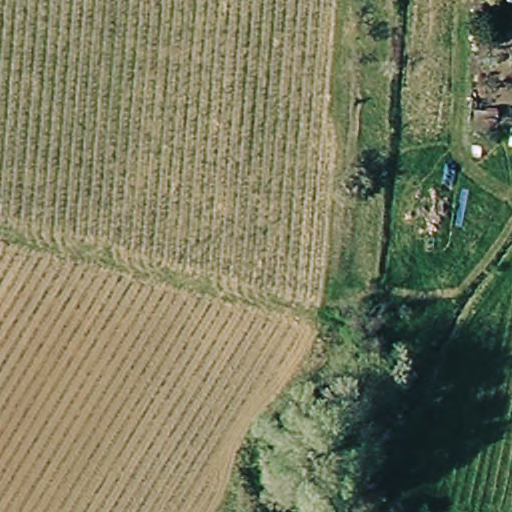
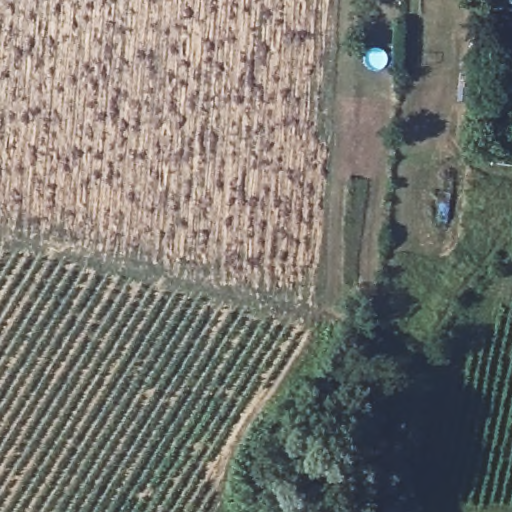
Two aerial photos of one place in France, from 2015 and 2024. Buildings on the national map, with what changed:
[]

